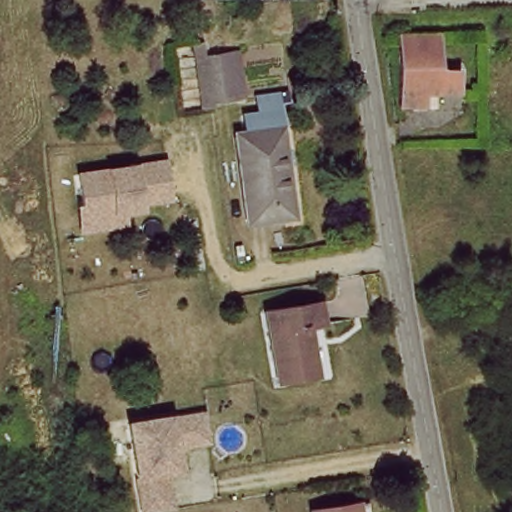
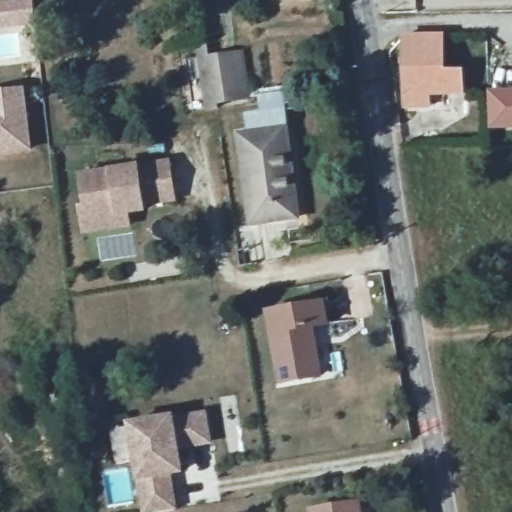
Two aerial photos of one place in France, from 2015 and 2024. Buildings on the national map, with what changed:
new [(36,24),(25,25),(1,28),(0,14),(0,4),(21,2),(33,0),(36,24)]
unchanged [(223,30),(214,31),(212,15),(221,14),(223,30)]
unchanged [(446,31),(447,64),(469,63),(469,95),(430,96),(430,106),(407,105),(404,32),(446,31)]
unchanged [(216,104),(209,59),(209,58),(231,55),(239,100),(216,104)]
new [(33,151),(0,156),(0,91),(25,87),(33,151)]
new [(492,129),(489,90),(512,88),(512,128),(492,129)]
unchanged [(304,214),(258,220),(246,130),(291,124),(304,214)]
unchanged [(180,202),(148,206),(148,210),(133,213),(133,227),(84,236),(80,205),(86,205),(81,172),(110,168),(140,165),(173,162),(180,202)]
unchanged [(313,328),(321,377),(281,385),(269,312),(324,303),(328,325),(313,328)]
unchanged [(210,446),(183,452),(186,475),(178,477),(183,511),(176,512),(148,512),(131,426),(203,413),(210,446)]
unchanged [(313,511),(360,503),(361,512),(313,512),(313,511)]

